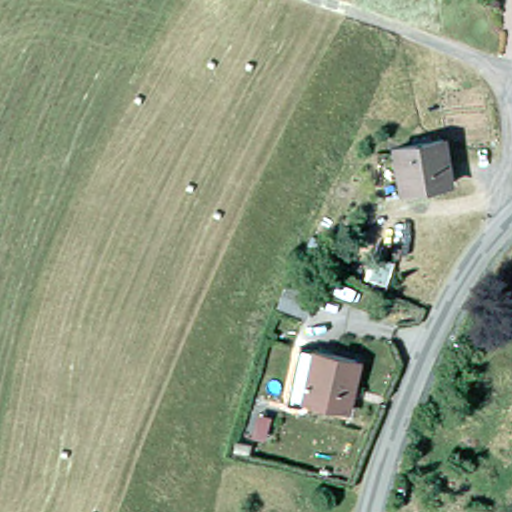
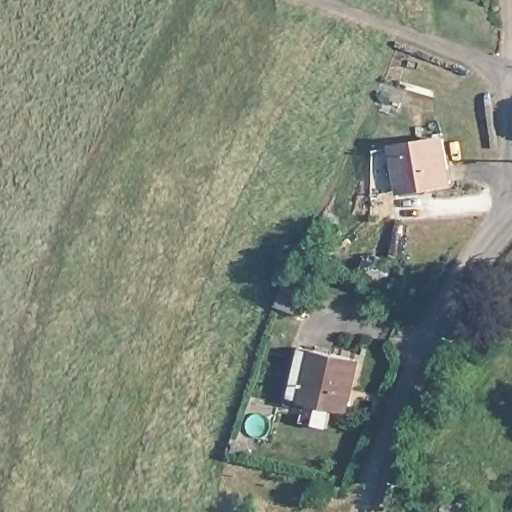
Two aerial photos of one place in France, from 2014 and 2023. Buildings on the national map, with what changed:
unchanged [(397,183),(391,139),(441,132),(447,177),(397,183)]
unchanged [(300,324),(273,314),(284,290),(310,300),(300,324)]
unchanged [(341,406),(284,392),(296,339),(353,353),(341,406)]

